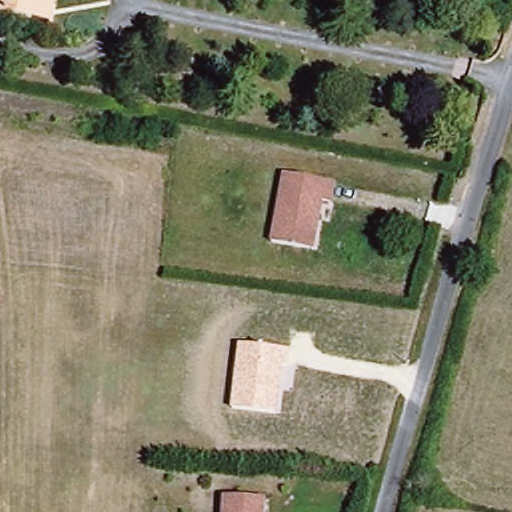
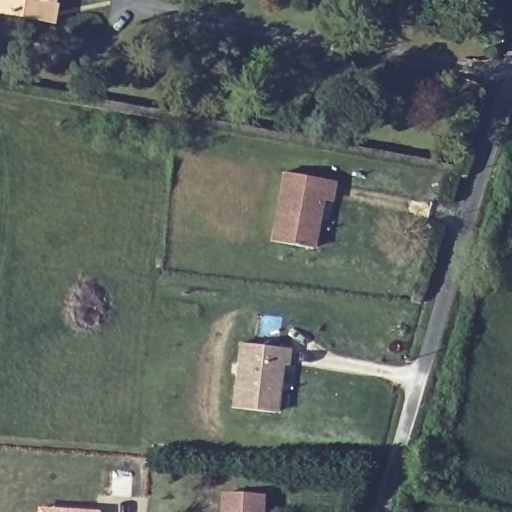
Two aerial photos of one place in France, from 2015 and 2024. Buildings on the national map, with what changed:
unchanged [(36,7),(34,17),(7,11),(9,3),(10,0),(38,0),(36,7)]
unchanged [(328,194),(320,193),(311,242),(270,234),(283,166),(332,176),(328,194)]
unchanged [(288,367),(282,367),(277,413),(230,408),(238,343),(289,348),(288,367)]
unchanged [(267,495),(266,512),(223,512),(224,492),(267,495)]
new [(98,510),(97,512),(37,512),(37,507),(98,510)]

